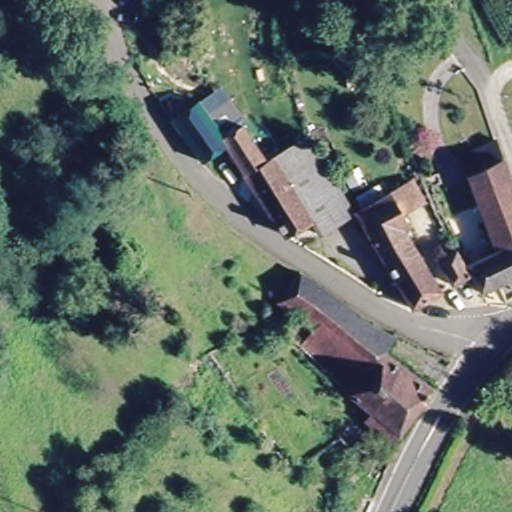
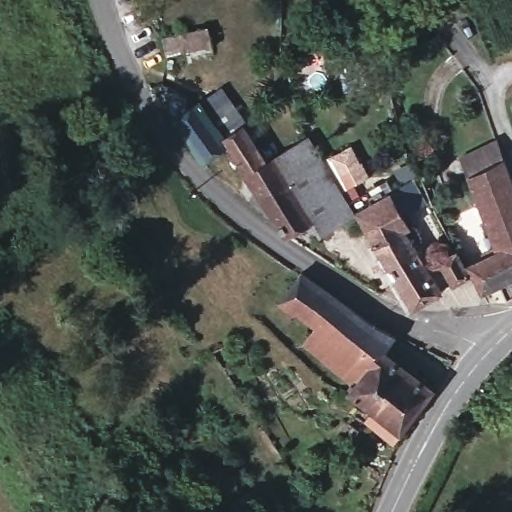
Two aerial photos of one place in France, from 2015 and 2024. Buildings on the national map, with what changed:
unchanged [(198,101),(224,136),(243,124),(265,157),(245,170),(229,147),(204,161),(173,117),(198,101)]
unchanged [(304,135),(353,212),(322,235),(312,224),(288,232),(283,222),(245,170),(265,157),(304,135)]
unchanged [(499,252),(469,180),(461,160),(497,141),(505,162),(512,182),(512,278),(482,293),(473,275),(454,284),(442,258),(459,249),(468,266),(499,252)]
unchanged [(408,227),(414,241),(443,291),(414,309),(356,211),(388,194),(394,195),(393,192),(415,179),(426,199),(404,212),(411,225),(408,227)]
unchanged [(370,417),(374,411),(348,392),(353,383),(302,347),(314,330),(291,312),(286,319),(278,300),(303,271),(379,328),(400,332),(387,351),(436,390),(398,438),(370,417)]

